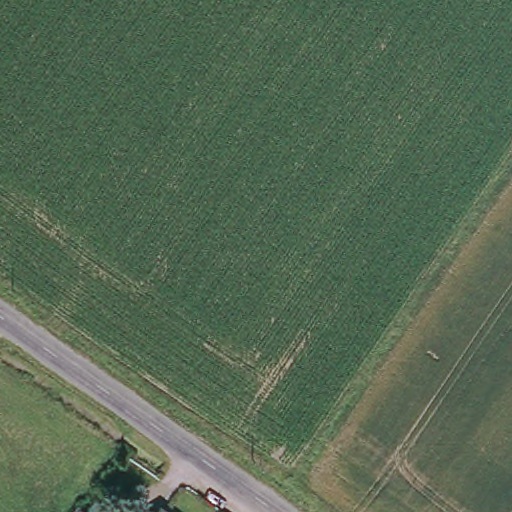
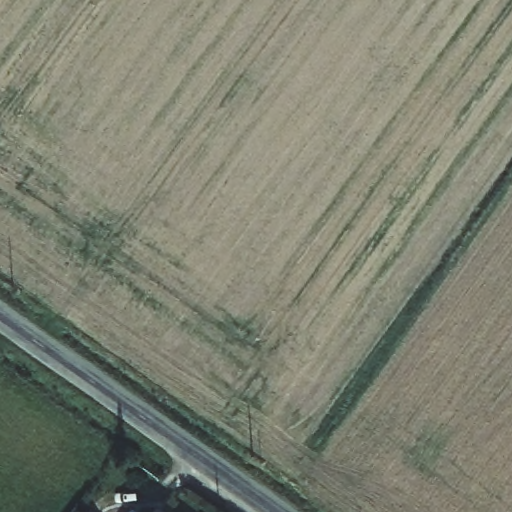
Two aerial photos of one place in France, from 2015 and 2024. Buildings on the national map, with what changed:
unchanged [(204,512),(163,512),(177,492),(204,512)]
unchanged [(94,512),(73,512),(80,501),(94,512)]

